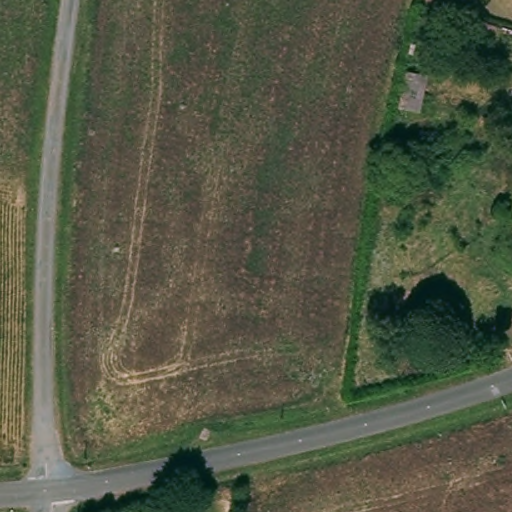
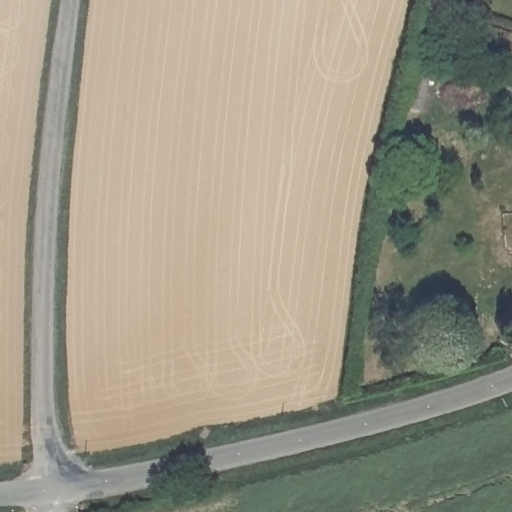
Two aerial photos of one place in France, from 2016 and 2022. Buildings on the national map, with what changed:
unchanged [(509,177),(512,177),(512,217),(511,217),(509,177)]

